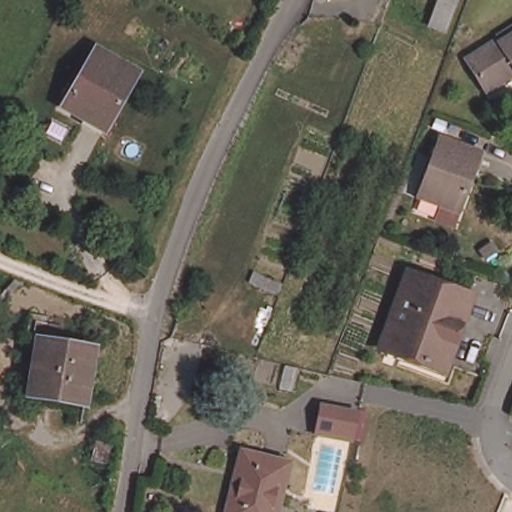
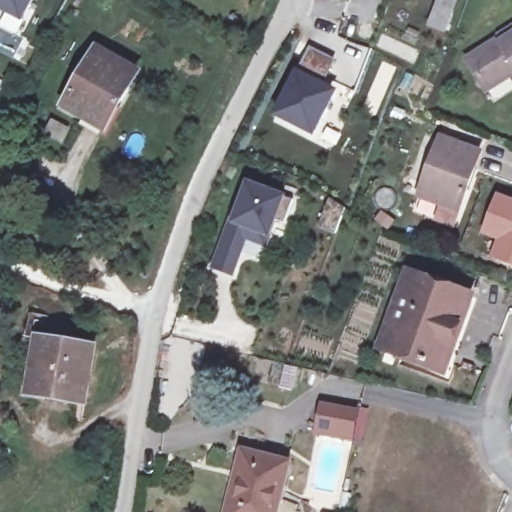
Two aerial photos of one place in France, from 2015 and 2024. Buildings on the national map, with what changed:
new [(0,2),(0,0),(29,0),(28,2),(21,14),(9,7),(0,2)]
unchanged [(450,27),(435,22),(444,0),(460,0),(450,27)]
unchanged [(482,92),(462,60),(495,40),(498,43),(512,34),(512,74),(482,92)]
new [(300,69),(312,47),(340,62),(327,84),(339,91),(315,136),(275,115),(300,69)]
unchanged [(91,50),(92,51),(130,74),(98,129),(67,110),(58,105),(91,50)]
unchanged [(477,154),(471,170),(467,169),(459,190),(462,192),(455,212),(415,197),(437,139),(477,154)]
new [(233,202),(237,203),(246,180),(286,197),(293,201),(285,224),(276,222),(270,239),(267,249),(247,242),(233,277),(210,268),(233,202)]
new [(495,191),(512,198),(512,266),(488,257),(495,241),(478,234),(495,191)]
unchanged [(387,323),(406,268),(466,290),(440,364),(398,350),(380,342),(387,323)]
unchanged [(32,347),(25,347),(29,328),(55,333),(50,351),(87,357),(77,408),(21,397),(32,347)]
unchanged [(352,437),(317,430),(322,413),(323,403),(357,412),(355,422),(352,437)]
unchanged [(97,440),(110,443),(106,459),(92,456),(97,440)]
unchanged [(240,452),(282,462),(269,512),(224,512),(226,506),(240,452)]

